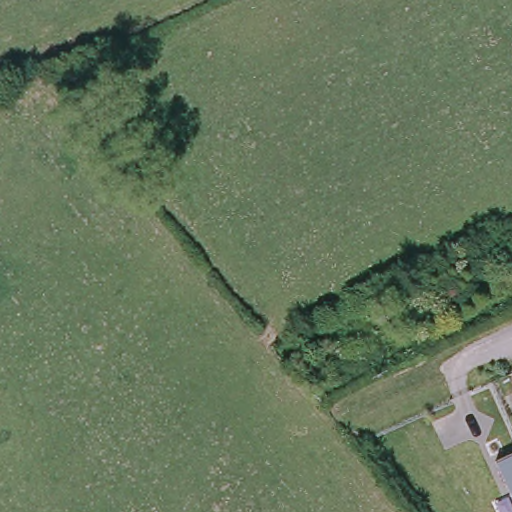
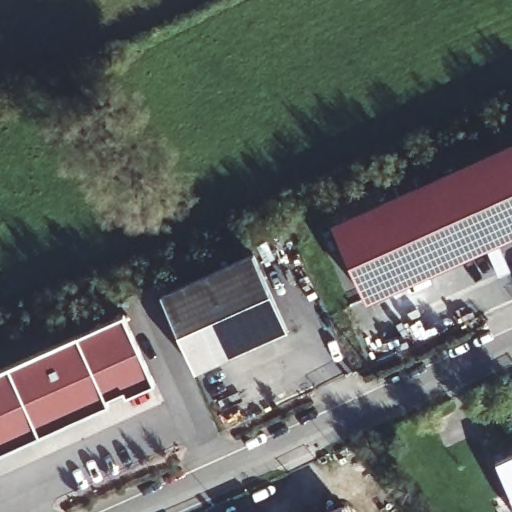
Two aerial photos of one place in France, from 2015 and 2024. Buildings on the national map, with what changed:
new [(512,229),(369,293),(340,217),(512,139),(512,229)]
new [(253,253),(287,330),(265,340),(212,271),(253,253)]
new [(212,271),(265,340),(195,371),(161,294),(212,271)]
new [(127,308),(156,377),(0,444),(0,368),(127,308)]
unchanged [(512,452),(512,496),(495,459),(512,452)]
new [(344,512),(329,512),(341,507),(344,512)]

